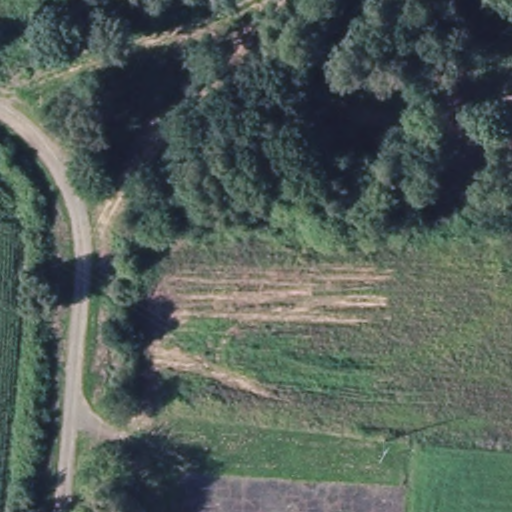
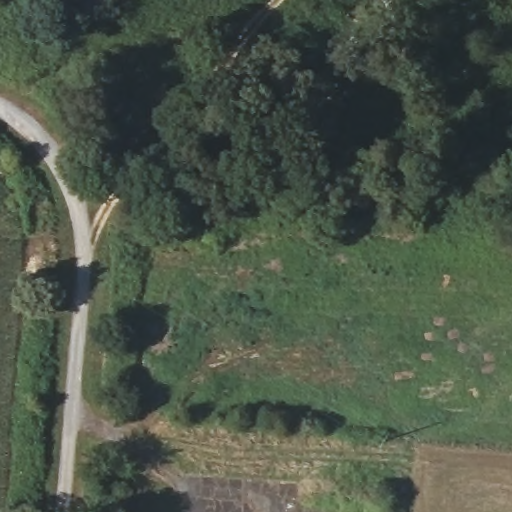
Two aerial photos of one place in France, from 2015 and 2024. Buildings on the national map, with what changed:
[]

